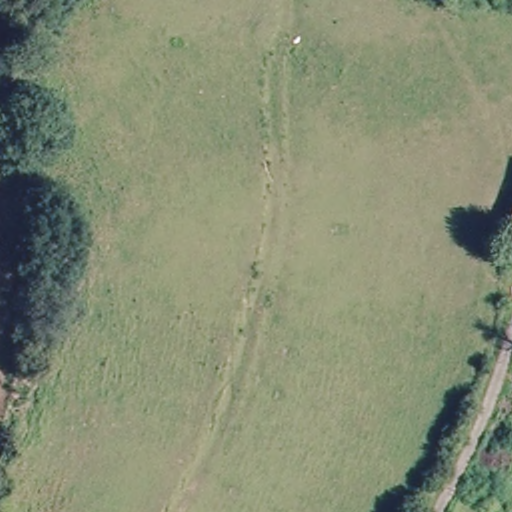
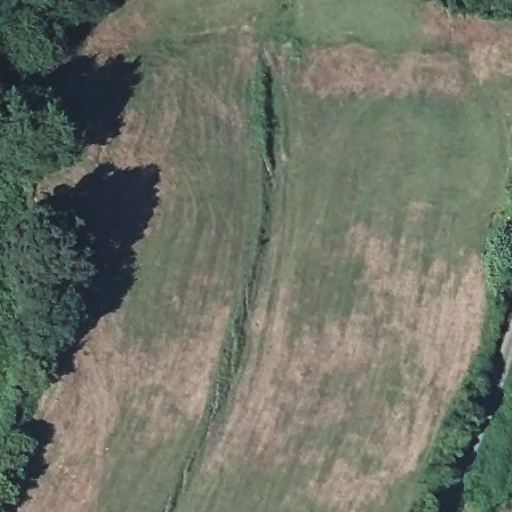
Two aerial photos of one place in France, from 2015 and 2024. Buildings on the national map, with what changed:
unchanged [(505,226),(512,209),(512,229),(505,226)]

